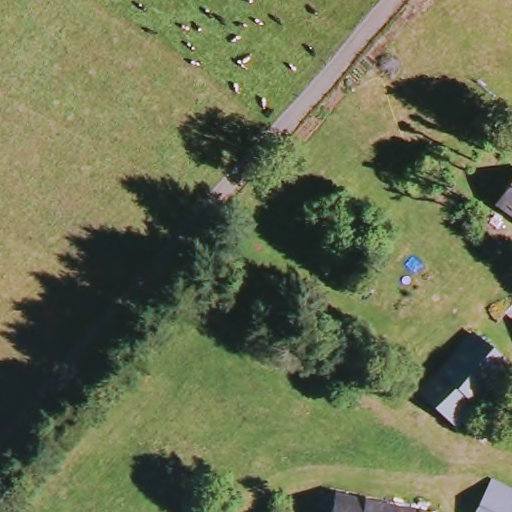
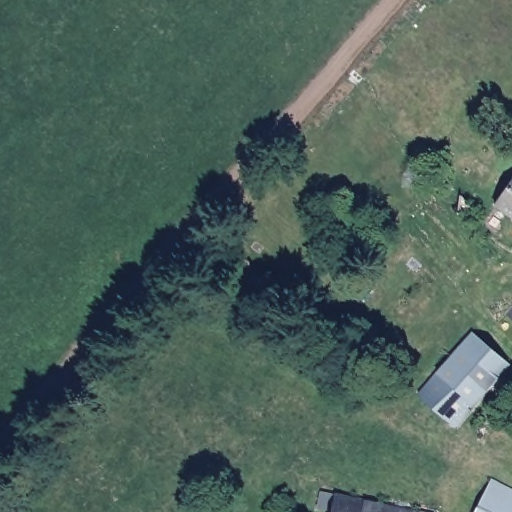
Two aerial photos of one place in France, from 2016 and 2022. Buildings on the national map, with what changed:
unchanged [(492,204),(512,180),(512,218),(492,204)]
unchanged [(512,362),(455,425),(419,392),(472,333),(512,362)]
unchanged [(472,512),(487,477),(512,490),(512,512),(472,512)]
unchanged [(332,512),(322,510),(326,488),(428,512),(332,512)]

